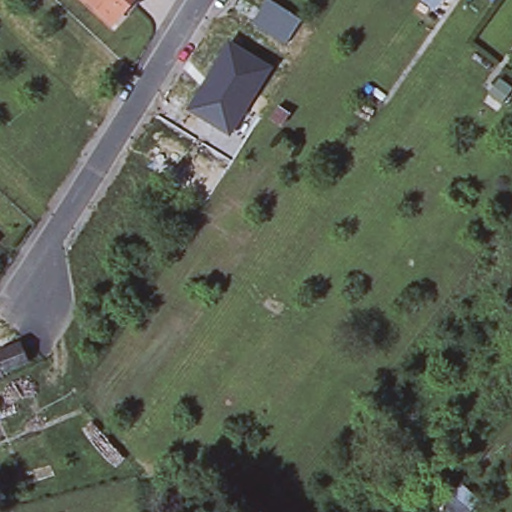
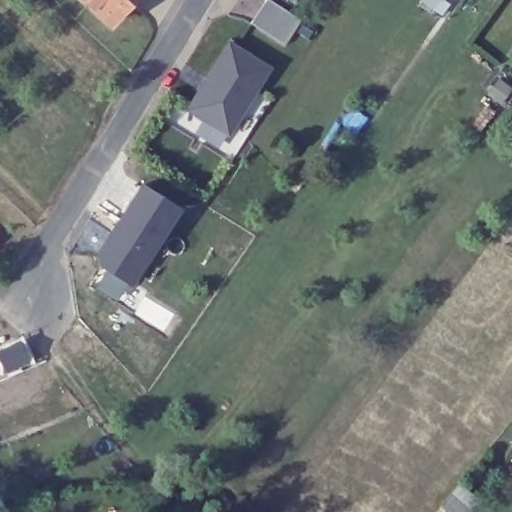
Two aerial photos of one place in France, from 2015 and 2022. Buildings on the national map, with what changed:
unchanged [(87,0),(130,0),(110,21),(87,0)]
new [(267,0),(273,0),(302,19),(285,43),(252,22),(267,0)]
unchanged [(229,41),(273,67),(231,136),(187,110),(229,41)]
new [(142,185),(181,209),(133,287),(129,283),(117,302),(95,286),(107,270),(95,260),(142,185)]
unchanged [(7,370),(0,353),(0,348),(21,340),(28,360),(7,370)]
unchanged [(510,446),(512,444),(512,448),(510,446)]

